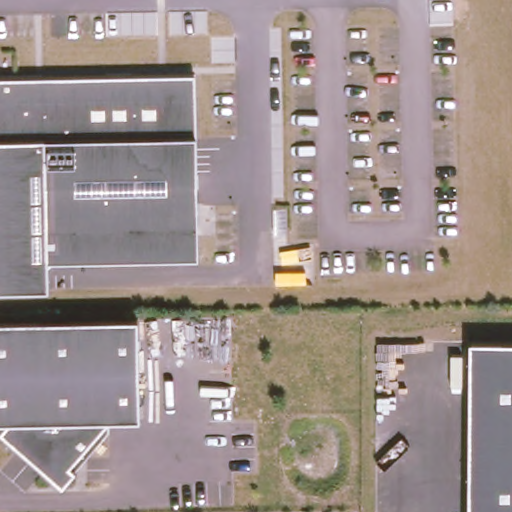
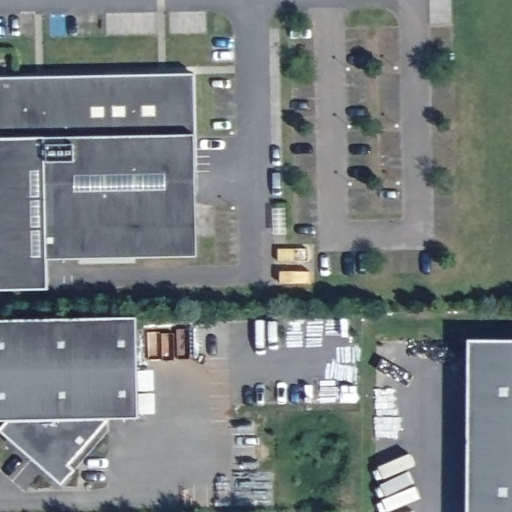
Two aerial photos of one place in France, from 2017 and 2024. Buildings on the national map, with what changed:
unchanged [(195,135),(197,258),(46,260),(48,289),(0,289),(0,79),(195,75),(195,135)]
unchanged [(139,418),(108,420),(68,465),(75,471),(62,485),(0,435),(0,433),(9,423),(0,423),(0,322),(136,320),(139,418)]
unchanged [(468,512),(469,341),(512,341),(512,512),(468,512)]

